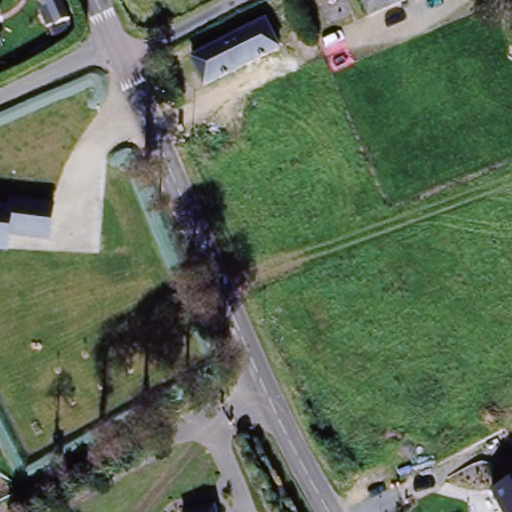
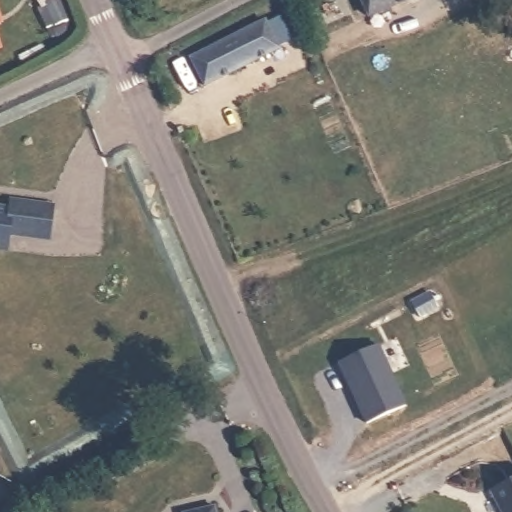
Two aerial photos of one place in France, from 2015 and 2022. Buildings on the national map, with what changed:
unchanged [(370,23),(358,0),(415,0),(370,23)]
unchanged [(208,81),(195,55),(265,21),(277,15),(285,34),(274,40),(278,47),(208,81)]
unchanged [(10,200),(57,206),(52,242),(13,238),(10,255),(0,253),(0,205),(10,206),(10,200)]
new [(377,345),(408,408),(367,426),(338,363),(377,345)]
unchanged [(501,512),(488,489),(512,477),(512,512),(501,512)]
unchanged [(215,512),(180,512),(179,510),(212,501),(215,512)]

